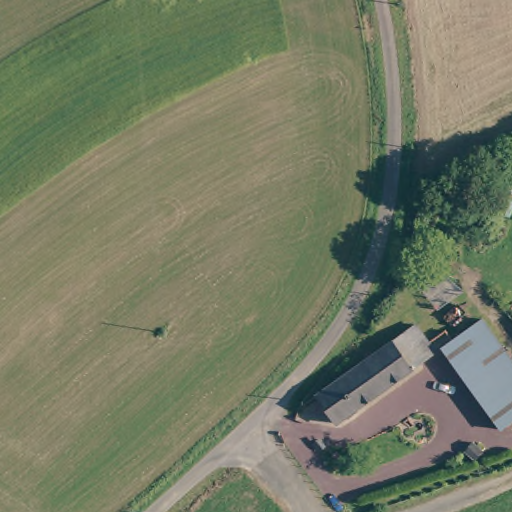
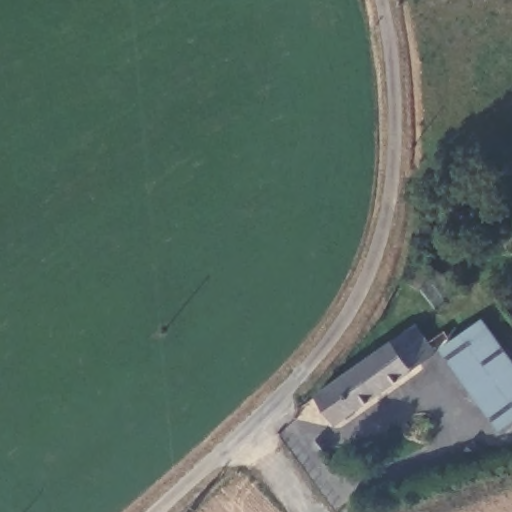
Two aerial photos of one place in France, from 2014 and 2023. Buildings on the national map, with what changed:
unchanged [(512,351),(512,414),(495,423),(449,337),(492,313),(512,351)]
unchanged [(416,319),(438,349),(338,421),(315,390),(416,319)]

